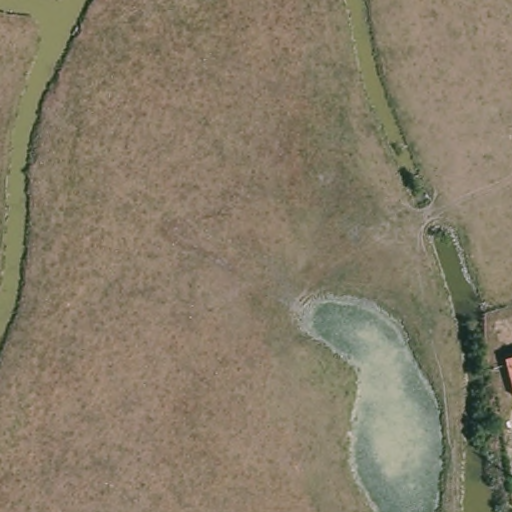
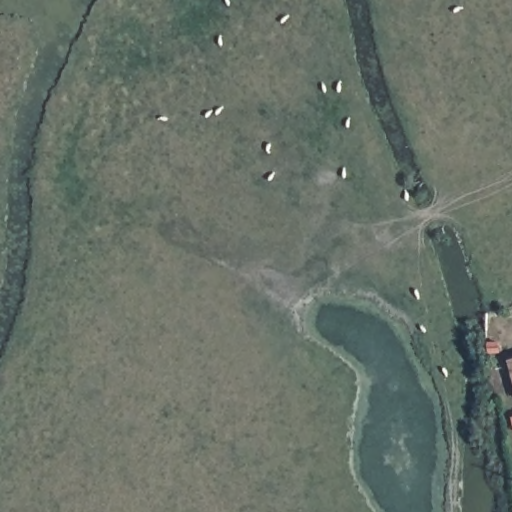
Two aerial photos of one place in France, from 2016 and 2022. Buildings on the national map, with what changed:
unchanged [(509,358),(512,357),(512,371),(509,358)]

